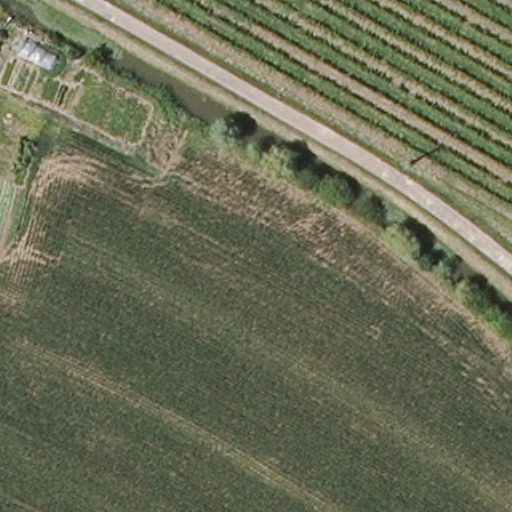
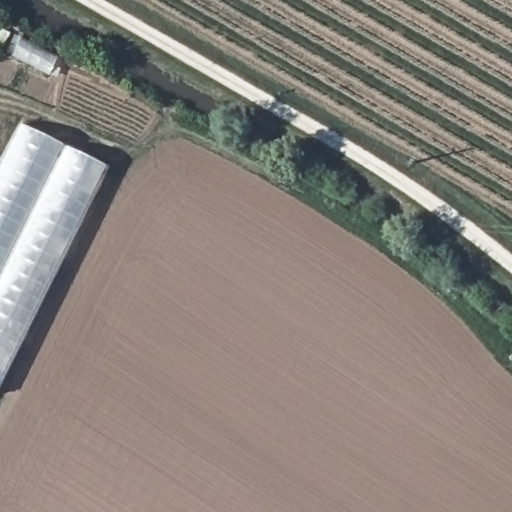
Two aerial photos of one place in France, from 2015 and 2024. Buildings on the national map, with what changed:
new [(0,385),(0,165),(20,124),(108,167),(0,385)]

